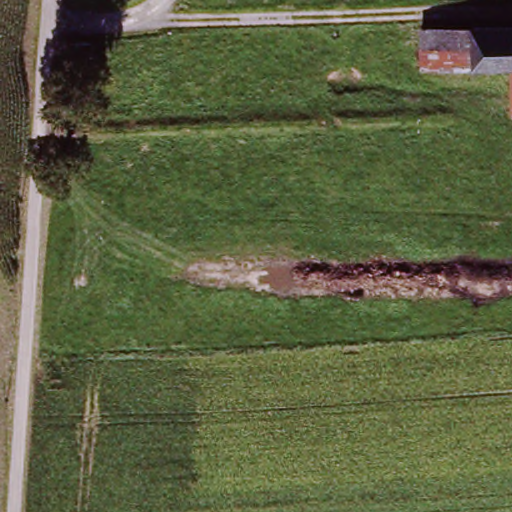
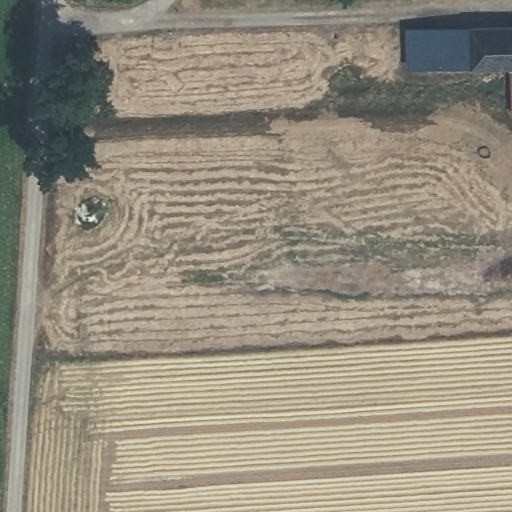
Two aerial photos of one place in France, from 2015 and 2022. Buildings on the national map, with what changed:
unchanged [(485,65),(485,24),(512,23),(512,64),(511,65),(485,65)]
unchanged [(429,24),(450,24),(485,24),(485,65),(450,65),(428,65),(429,24)]
unchanged [(512,117),(511,65),(512,64),(512,117)]

